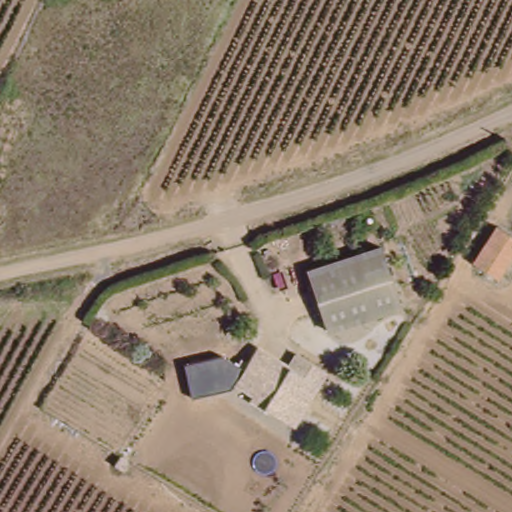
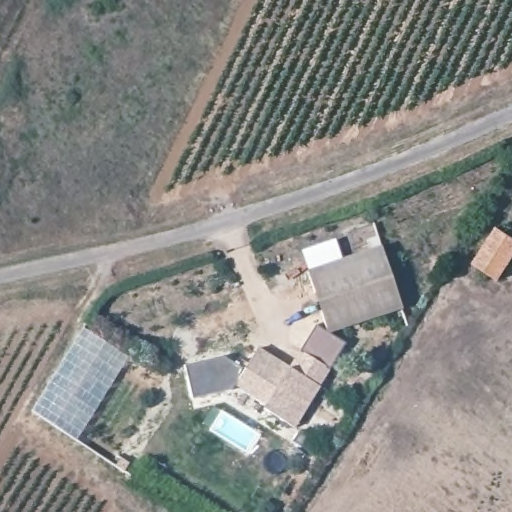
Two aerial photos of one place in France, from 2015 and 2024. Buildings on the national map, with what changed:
unchanged [(512,250),(493,280),(470,264),(494,228),(512,239),(512,250)]
unchanged [(399,310),(327,332),(308,270),(381,249),(399,310)]
new [(82,327),(128,357),(75,440),(30,411),(82,327)]
unchanged [(283,425),(265,413),(251,406),(255,398),(237,387),(258,350),(292,370),(298,357),(328,376),(319,391),(295,432),(283,425)]
unchanged [(192,398),(184,365),(229,355),(248,368),(237,387),(192,398)]

